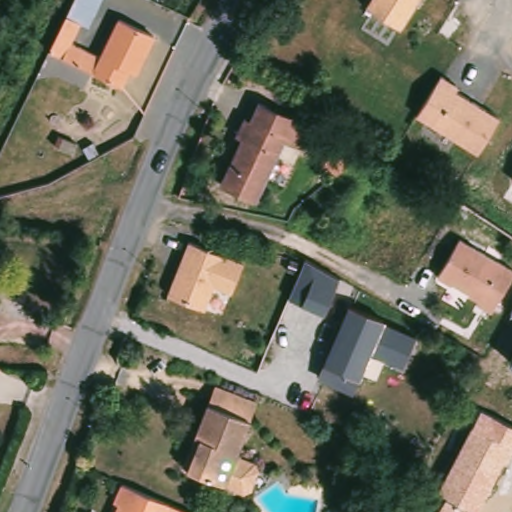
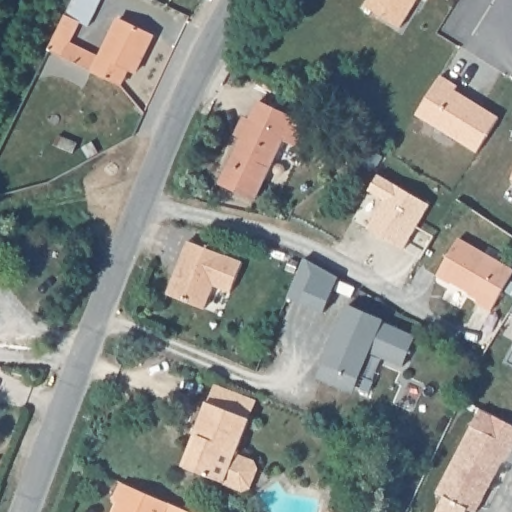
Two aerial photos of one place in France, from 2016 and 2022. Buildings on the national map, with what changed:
unchanged [(85,21),(75,44),(59,36),(74,0),(104,0),(93,25),(85,21)]
unchanged [(411,0),(396,24),(363,4),(366,0),(411,0)]
unchanged [(59,36),(75,44),(97,55),(117,19),(152,37),(131,74),(126,71),(116,87),(51,55),(59,36)]
unchanged [(478,154),(416,115),(442,75),(460,87),(458,90),(501,116),(478,154)]
unchanged [(317,132),(302,156),(284,145),(252,197),(218,175),(264,100),(317,132)]
new [(378,174),(431,205),(404,250),(368,229),(384,199),(368,192),(378,174)]
unchanged [(512,180),(510,179),(512,176),(512,180)]
demolished [(266,227),(299,244),(292,259),(258,243),(266,227)]
unchanged [(436,276),(460,237),(512,267),(512,275),(491,311),(436,276)]
unchanged [(231,294),(214,287),(204,310),(166,293),(188,239),(244,260),(231,294)]
unchanged [(324,313),(288,297),(306,257),(341,273),(324,313)]
unchanged [(403,367),(370,353),(359,380),(353,392),(319,377),(326,362),(349,303),(416,332),(403,367)]
unchanged [(512,311),(512,321),(508,319),(512,311)]
unchanged [(512,358),(512,366),(509,364),(512,358)]
unchanged [(194,433),(207,402),(215,382),(238,390),(231,411),(248,417),(234,456),(252,462),(255,469),(248,488),(242,492),(223,485),(191,473),(180,469),(194,433)]
unchanged [(469,508),(467,512),(437,512),(446,493),(438,490),(479,408),(512,424),(512,450),(479,512),(476,512),(469,508)]
unchanged [(120,506),(114,502),(122,484),(168,504),(188,512),(117,512),(120,506)]

